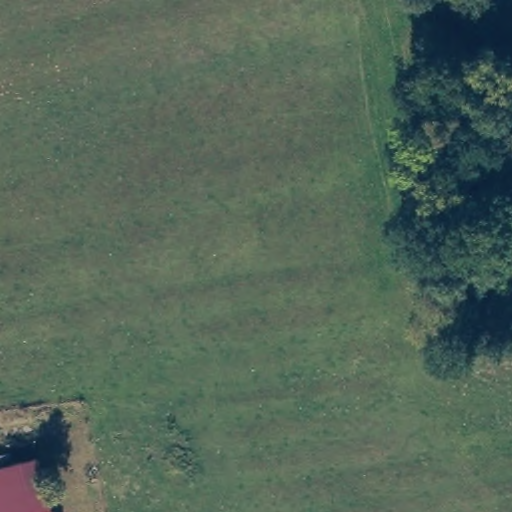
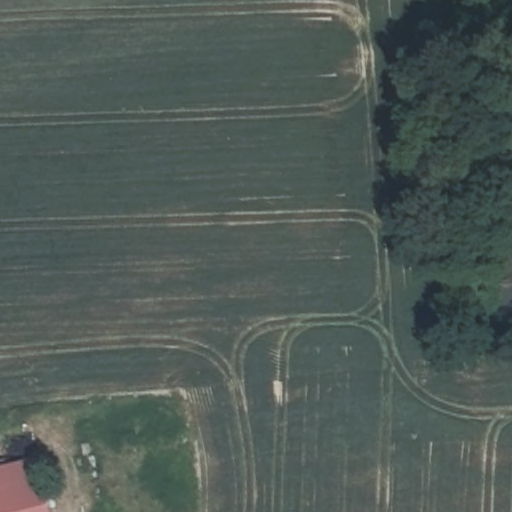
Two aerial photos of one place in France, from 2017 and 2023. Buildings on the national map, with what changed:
unchanged [(37,458),(51,512),(0,512),(0,468),(37,458)]

